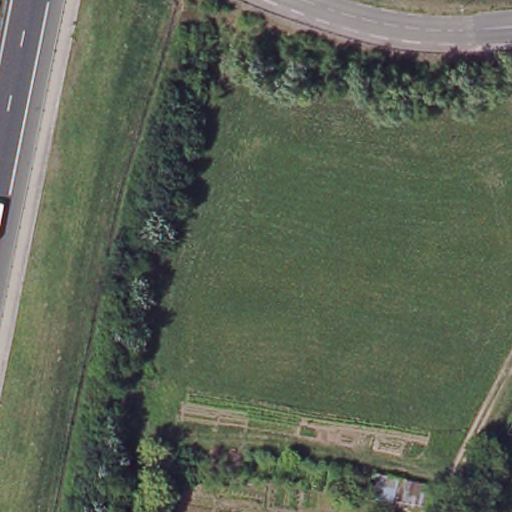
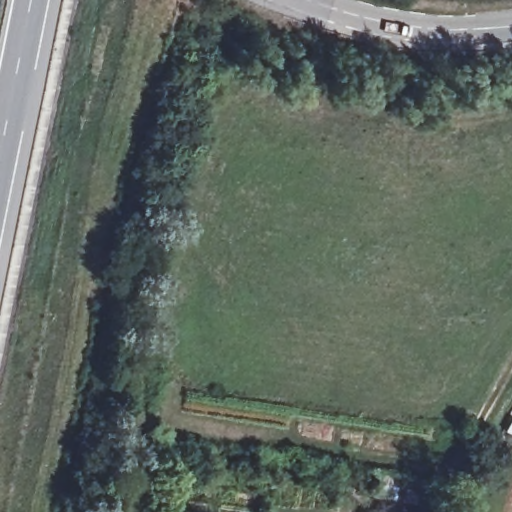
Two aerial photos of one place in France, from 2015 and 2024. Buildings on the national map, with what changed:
unchanged [(445,486),(442,509),(370,496),(375,474),(445,486)]

